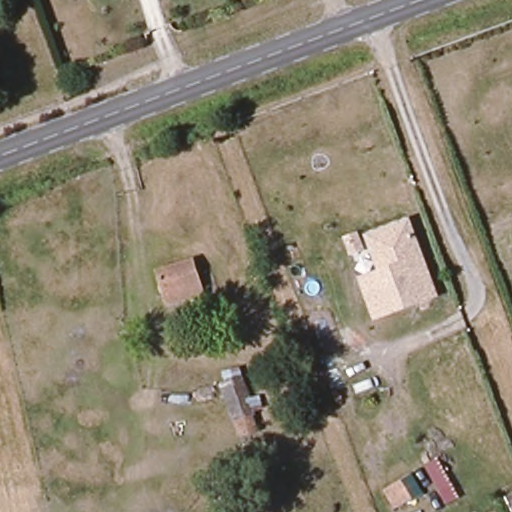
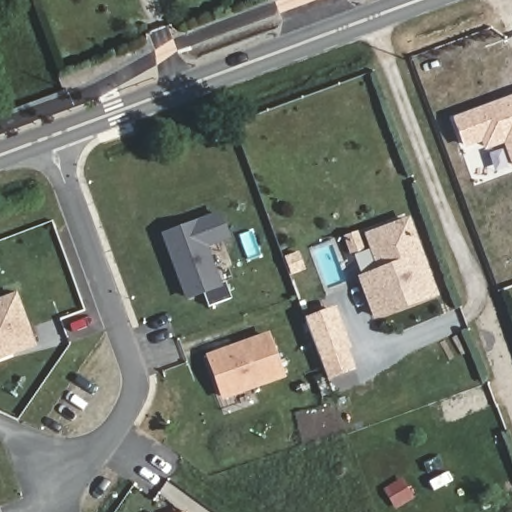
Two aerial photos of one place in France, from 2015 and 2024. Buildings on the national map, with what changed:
new [(495,146),(492,137),(465,147),(455,117),(512,97),(512,160),(505,142),(495,146)]
new [(220,213),(228,236),(205,244),(220,284),(189,296),(165,234),(220,213)]
unchanged [(407,218),(437,297),(371,320),(356,276),(376,269),(364,233),(407,218)]
demolished [(162,274),(190,263),(196,291),(174,300),(162,274)]
new [(234,296),(210,305),(205,290),(228,281),(234,296)]
new [(0,360),(0,297),(16,291),(36,346),(0,360)]
new [(331,376),(325,358),(312,323),(340,312),(353,347),(360,366),(331,376)]
new [(268,334),(283,374),(225,395),(210,355),(268,334)]
demolished [(251,372),(263,417),(253,419),(260,436),(239,439),(217,383),(251,372)]

